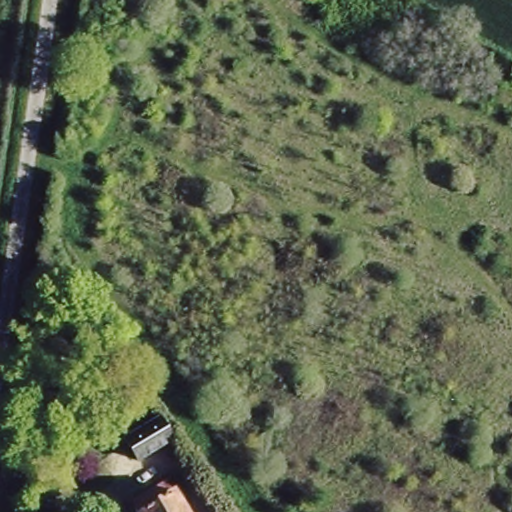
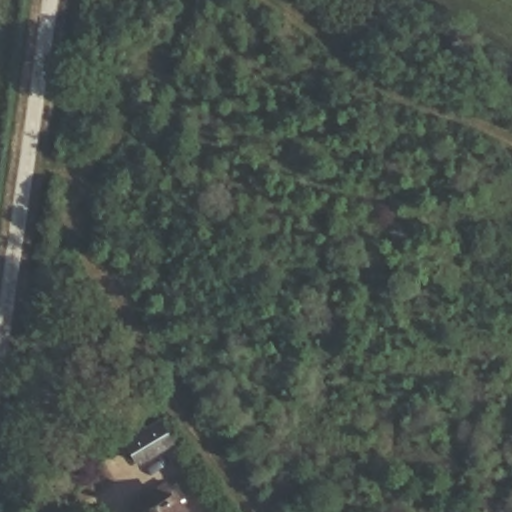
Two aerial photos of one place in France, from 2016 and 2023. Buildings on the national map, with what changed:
unchanged [(155,419),(171,443),(136,470),(130,461),(120,446),(155,419)]
unchanged [(161,485),(184,512),(128,512),(127,511),(161,485)]

